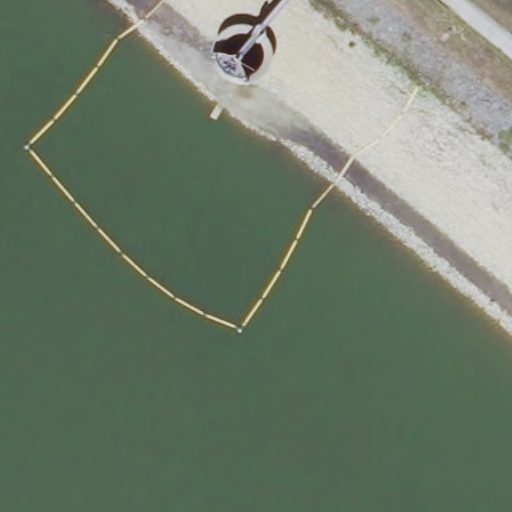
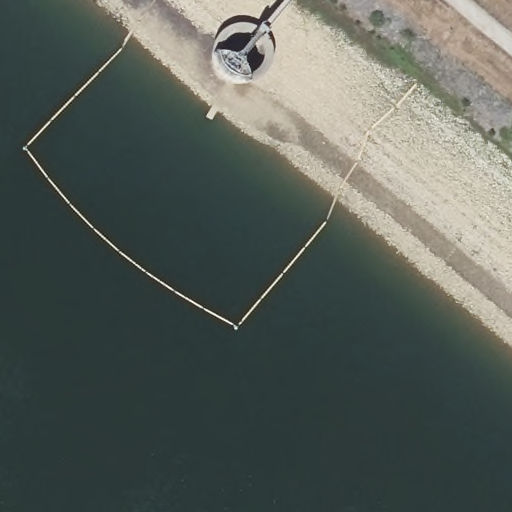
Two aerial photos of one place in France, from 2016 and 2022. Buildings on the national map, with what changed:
unchanged [(241,94),(219,90),(201,73),(200,59),(207,41),(232,34),(251,43),(264,59),(258,78),(241,94)]

